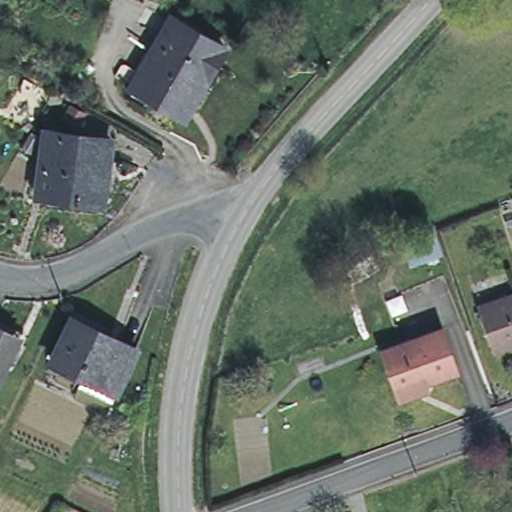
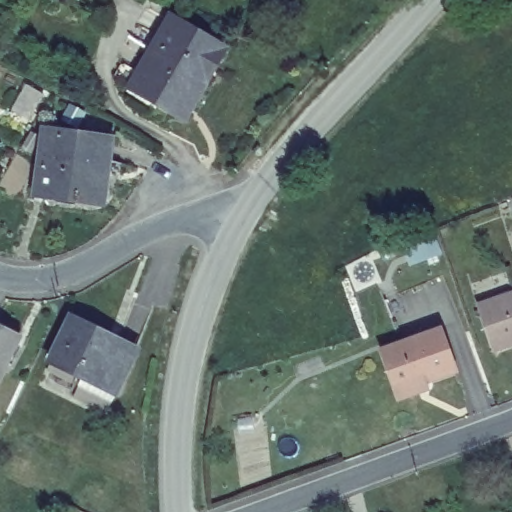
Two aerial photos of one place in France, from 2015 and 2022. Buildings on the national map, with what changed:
unchanged [(169,23),(223,52),(191,111),(187,120),(133,91),(138,82),(169,23)]
unchanged [(89,114),(81,129),(68,122),(76,107),(89,114)]
unchanged [(110,142),(99,202),(34,192),(45,131),(110,142)]
unchanged [(494,346),(481,311),(512,299),(512,348),(497,354),(494,346)]
unchanged [(19,338),(0,376),(0,322),(22,332),(19,338)]
unchanged [(49,376),(53,367),(75,324),(108,340),(105,346),(138,361),(118,398),(113,407),(49,376)]
unchanged [(444,328),(460,372),(435,381),(418,337),(444,328)]
unchanged [(421,393),(399,400),(383,350),(418,337),(435,381),(428,383),(430,390),(421,393)]

